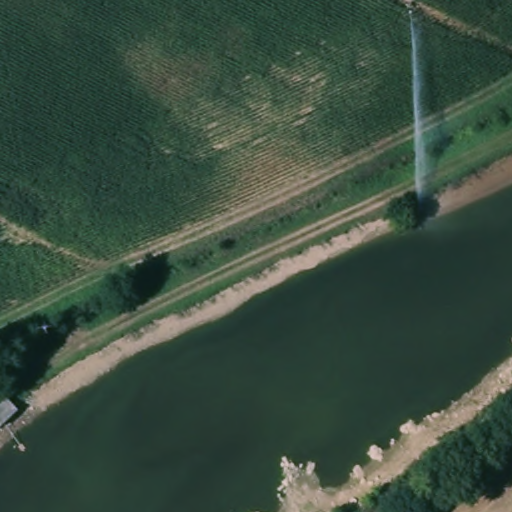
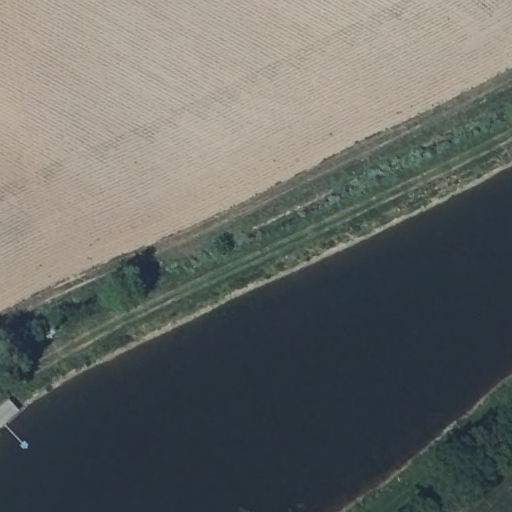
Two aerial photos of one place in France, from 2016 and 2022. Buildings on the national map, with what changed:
unchanged [(0,430),(0,404),(5,398),(19,411),(0,430)]

